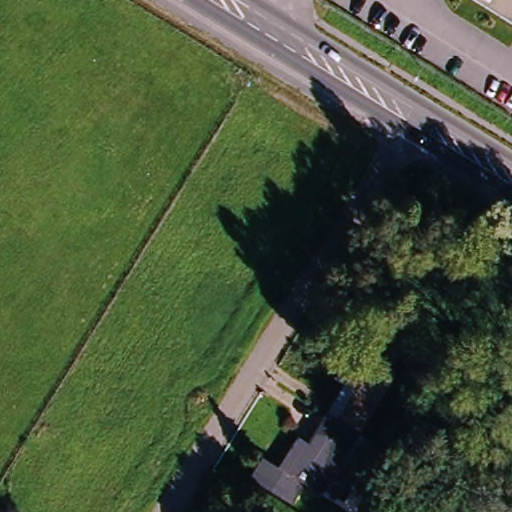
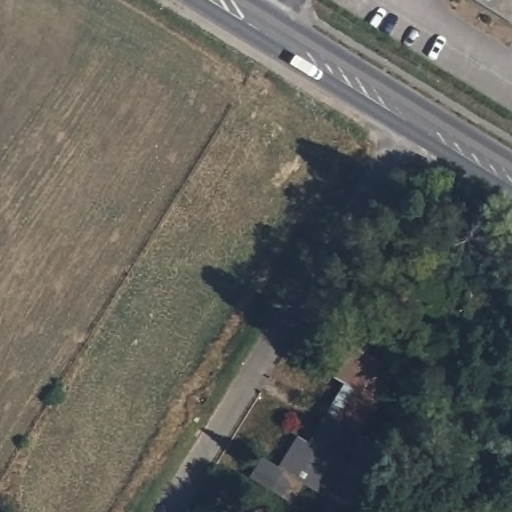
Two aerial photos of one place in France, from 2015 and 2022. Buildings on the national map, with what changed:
unchanged [(512,0),(512,22),(475,0),(512,0)]
unchanged [(333,378),(352,347),(394,373),(357,434),(339,423),(325,414),(334,399),(343,385),(333,378)]
unchanged [(355,480),(343,500),(324,488),(320,494),(302,484),(290,504),(249,478),(262,458),(277,468),(297,437),(307,443),(315,429),(325,414),(339,423),(357,434),(340,460),(352,467),(355,480)]

